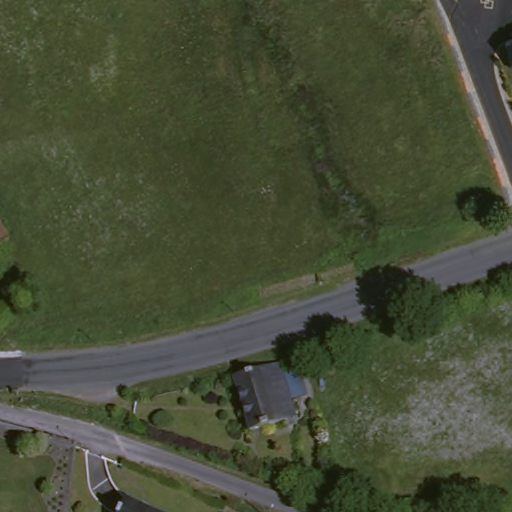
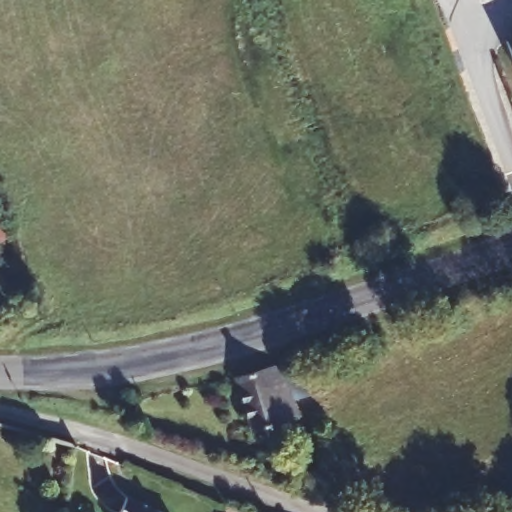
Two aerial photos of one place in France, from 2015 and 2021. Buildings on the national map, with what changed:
unchanged [(512,41),(512,71),(503,43),(512,41)]
unchanged [(280,379),(297,373),(303,399),(287,404),(292,422),(246,435),(230,381),(277,367),(280,379)]
unchanged [(135,512),(115,512),(118,505),(135,512)]

